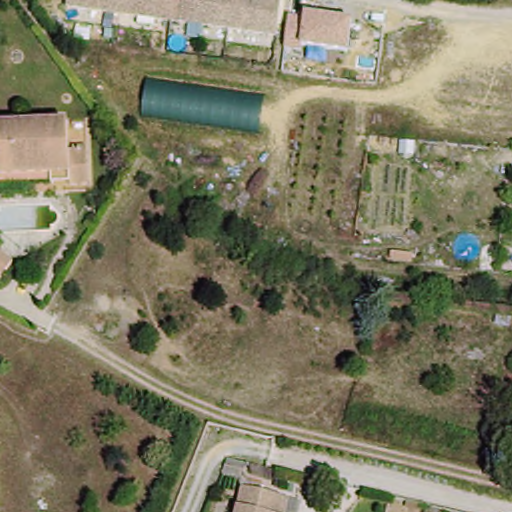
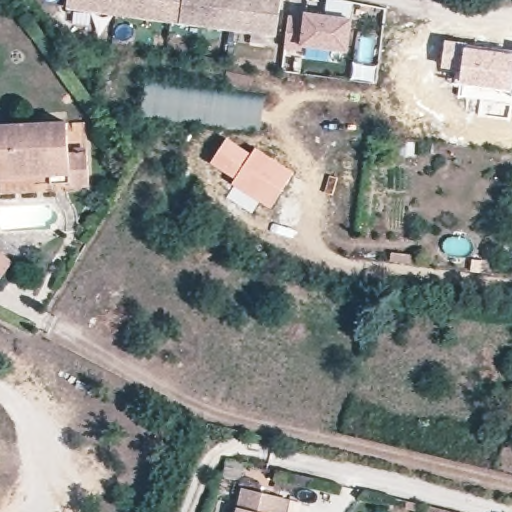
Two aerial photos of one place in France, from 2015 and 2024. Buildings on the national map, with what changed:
unchanged [(273,30),(65,2),(66,0),(277,0),(273,30)]
unchanged [(290,14),(305,16),(305,14),(353,20),(348,53),(302,47),(301,51),(285,48),(290,14)]
new [(460,72),(440,68),(444,39),(480,47),(512,51),(512,99),(510,99),(510,104),(458,96),(458,85),(460,72)]
unchanged [(142,110),(146,80),(267,99),(262,131),(142,110)]
unchanged [(54,176),(2,176),(1,150),(0,150),(0,125),(72,123),(73,154),(93,155),(94,190),(75,190),(75,188),(54,188),(54,182),(54,176)]
new [(293,172),(270,208),(231,182),(233,179),(209,162),(227,137),(250,152),(255,147),(293,172)]
unchanged [(0,271),(0,244),(13,255),(1,272),(0,271)]
unchanged [(280,496),(276,512),(234,512),(240,488),(280,496)]

